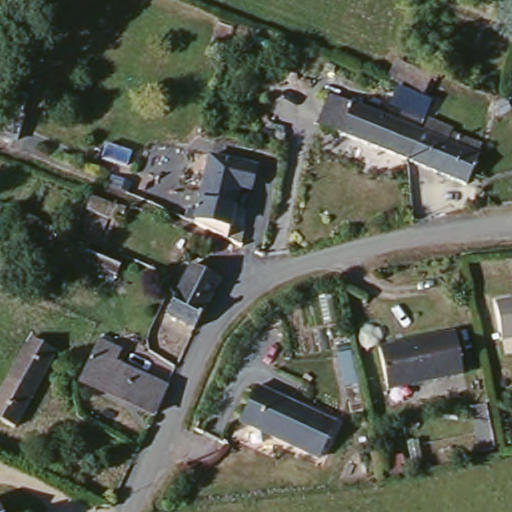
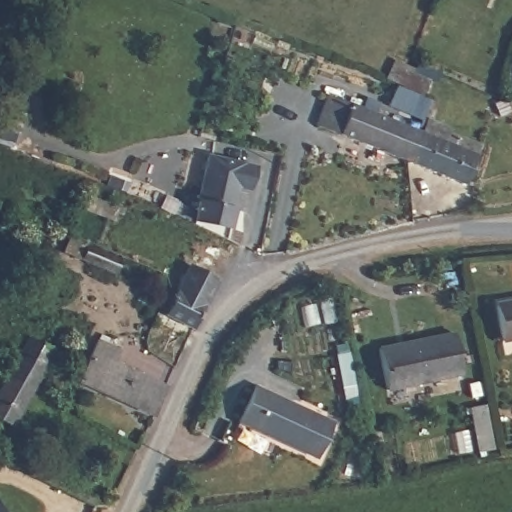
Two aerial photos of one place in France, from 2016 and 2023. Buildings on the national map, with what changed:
unchanged [(417,116),(385,101),(392,84),(382,80),(392,60),(411,69),(415,62),(434,71),(430,80),(424,77),(418,90),(427,95),(417,116)]
unchanged [(311,122),(322,91),(413,127),(402,157),(311,122)]
unchanged [(510,114),(500,118),(495,106),(505,102),(510,114)]
unchanged [(413,127),(418,130),(424,115),(448,125),(447,129),(476,141),(475,152),(461,182),(402,157),(413,127)]
unchanged [(177,195),(195,199),(204,154),(250,165),(240,208),(229,205),(225,225),(238,232),(234,242),(200,226),(172,212),(177,195)]
unchanged [(118,214),(123,216),(120,225),(115,223),(118,214)]
unchanged [(70,229),(121,251),(116,266),(64,244),(70,229)]
unchanged [(194,331),(165,316),(190,267),(219,282),(194,331)]
unchanged [(512,342),(501,345),(495,305),(512,302),(512,342)]
unchanged [(454,330),(462,371),(387,386),(378,345),(454,330)]
unchanged [(24,335),(50,349),(9,423),(0,419),(0,378),(24,335)]
unchanged [(80,375),(98,336),(121,347),(115,359),(167,384),(156,410),(80,375)]
unchanged [(337,418),(318,460),(244,425),(261,385),(337,418)]
unchanged [(486,407),(495,450),(479,453),(470,410),(486,407)]
unchanged [(2,512),(0,512),(0,508),(2,512)]

